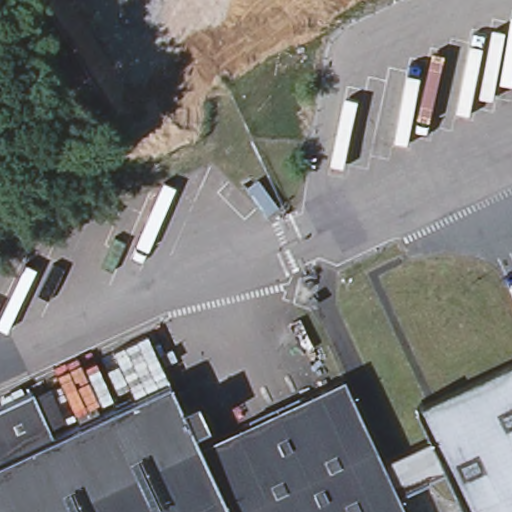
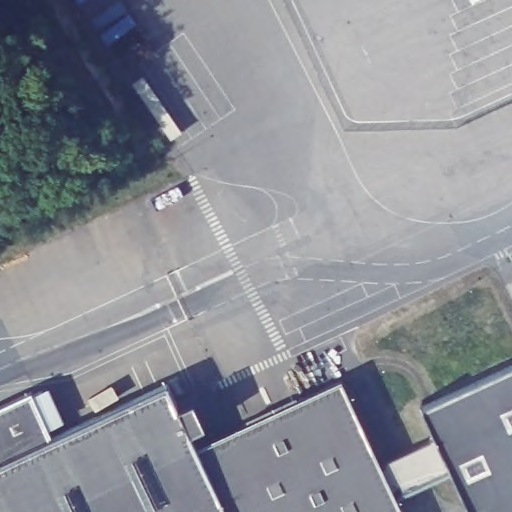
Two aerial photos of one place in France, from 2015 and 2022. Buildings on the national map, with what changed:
unchanged [(420,406),(512,363),(512,512),(470,512),(450,470),(396,495),(380,463),(435,437),(420,406)]
unchanged [(380,463),(396,495),(404,512),(227,512),(197,448),(341,379),(380,463)]
unchanged [(165,382),(197,448),(227,512),(0,512),(0,459),(48,437),(165,382)]
unchanged [(48,437),(0,459),(0,408),(28,394),(48,437)]

